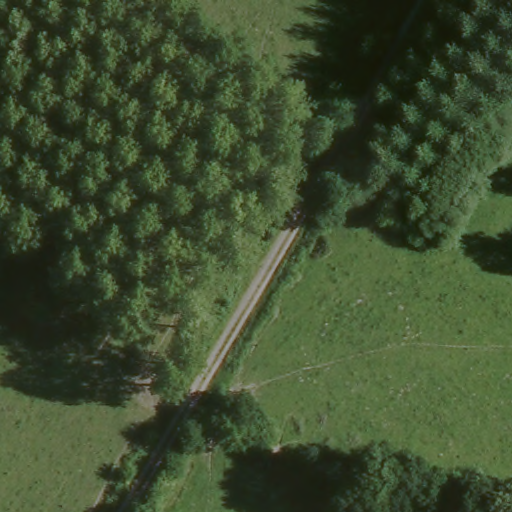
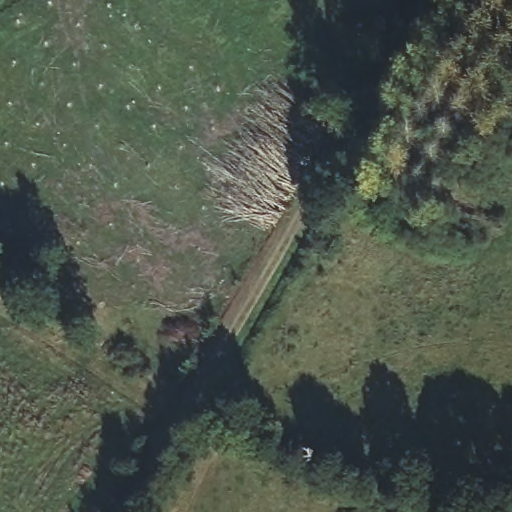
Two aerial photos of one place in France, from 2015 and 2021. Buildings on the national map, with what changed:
[]

